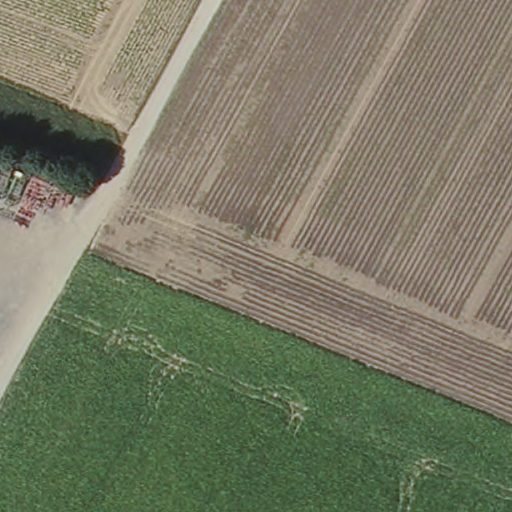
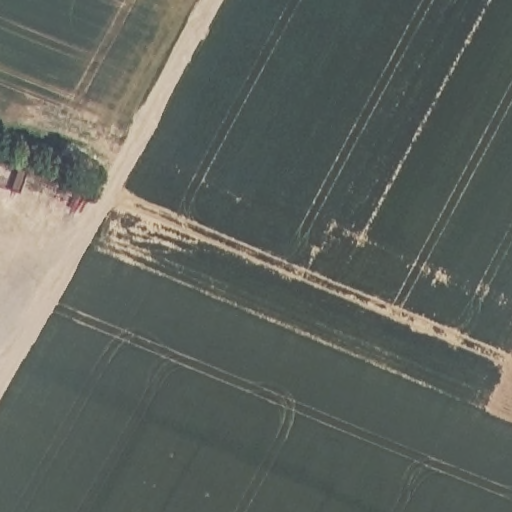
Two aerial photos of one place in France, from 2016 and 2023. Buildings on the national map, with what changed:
[]

